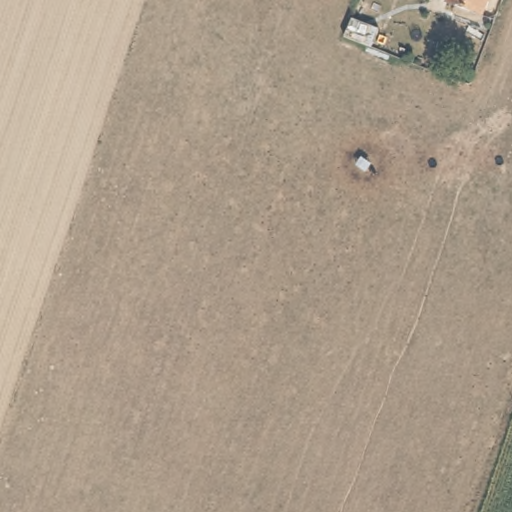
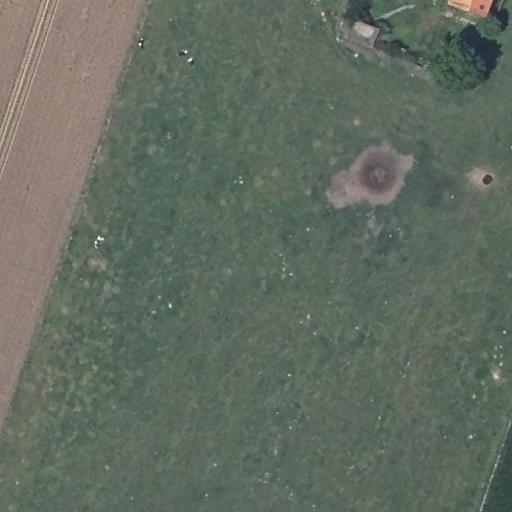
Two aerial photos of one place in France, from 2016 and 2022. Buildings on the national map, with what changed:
unchanged [(487,15),(453,3),(454,0),(493,0),(487,15)]
unchanged [(375,50),(345,40),(353,15),(383,27),(375,50)]

